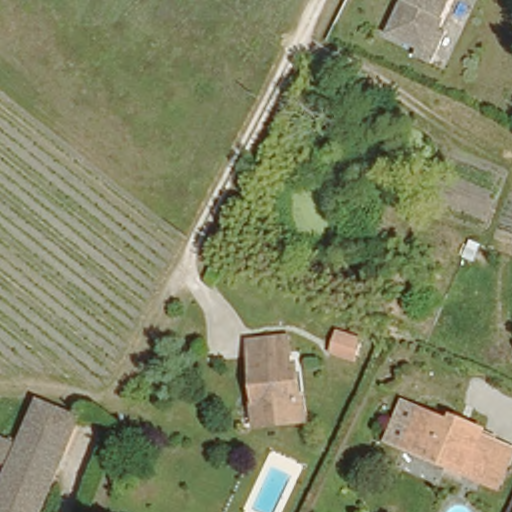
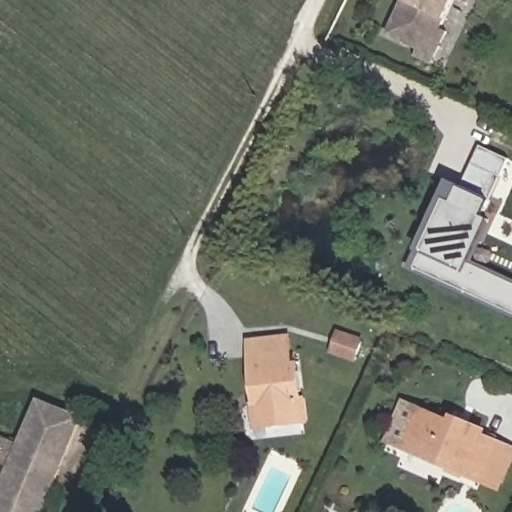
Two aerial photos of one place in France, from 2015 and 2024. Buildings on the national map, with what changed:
unchanged [(394,0),(444,0),(433,24),(440,27),(424,60),(408,52),(412,46),(379,31),(394,0)]
new [(507,160),(483,216),(491,220),(472,263),(512,282),(512,314),(413,268),(451,182),(461,187),(479,147),(507,160)]
unchanged [(331,326),(354,336),(345,354),(323,344),(331,326)]
unchanged [(258,399),(254,353),(253,338),(290,335),(291,350),(292,363),(299,363),(302,420),(268,422),(259,422),(258,399)]
unchanged [(0,475),(16,442),(20,435),(36,401),(80,420),(40,512),(0,512),(0,475)]
unchanged [(421,403),(446,413),(449,407),(487,423),(483,432),(512,441),(512,452),(499,486),(399,441),(421,403)]

